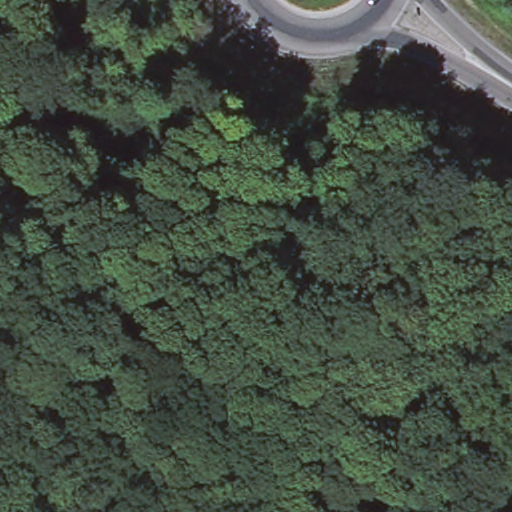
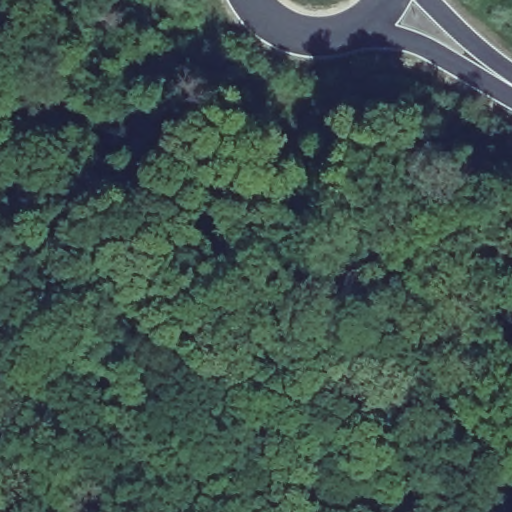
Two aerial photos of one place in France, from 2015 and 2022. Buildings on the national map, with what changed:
[]

